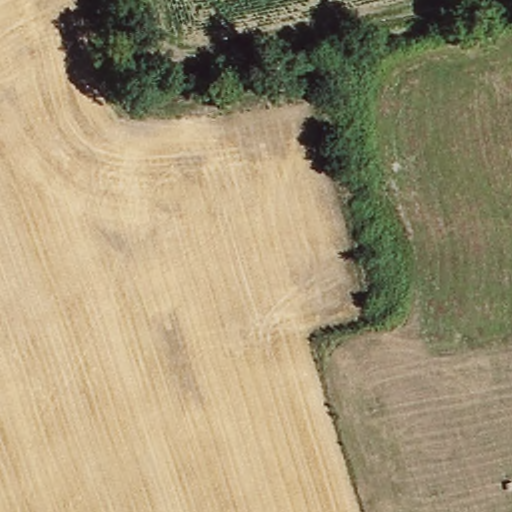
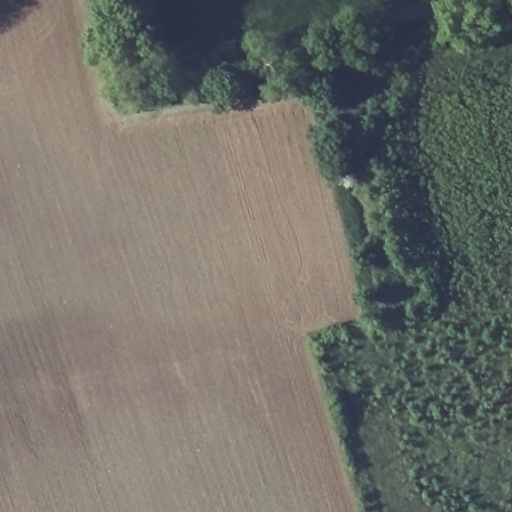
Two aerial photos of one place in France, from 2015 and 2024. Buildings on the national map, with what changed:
[]

